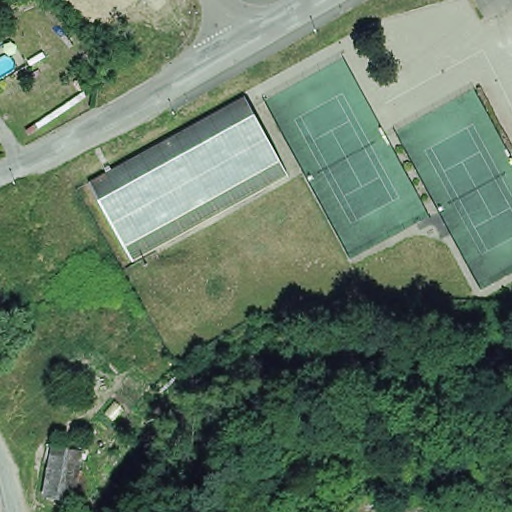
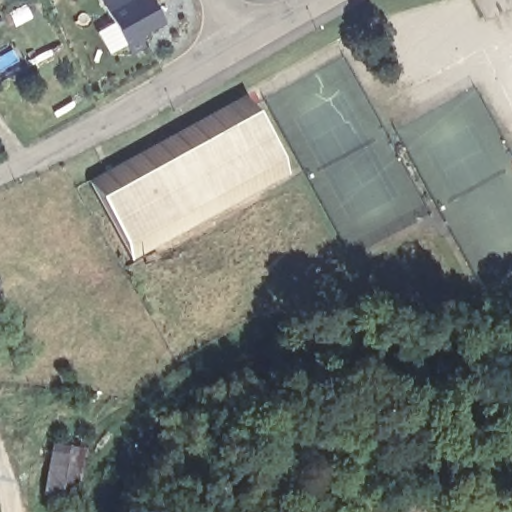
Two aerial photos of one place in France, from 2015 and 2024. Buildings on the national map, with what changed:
new [(172,30),(132,53),(100,0),(154,0),(172,30)]
unchanged [(87,186),(240,100),(285,178),(130,264),(87,186)]
unchanged [(43,500),(52,452),(81,457),(72,506),(43,500)]

